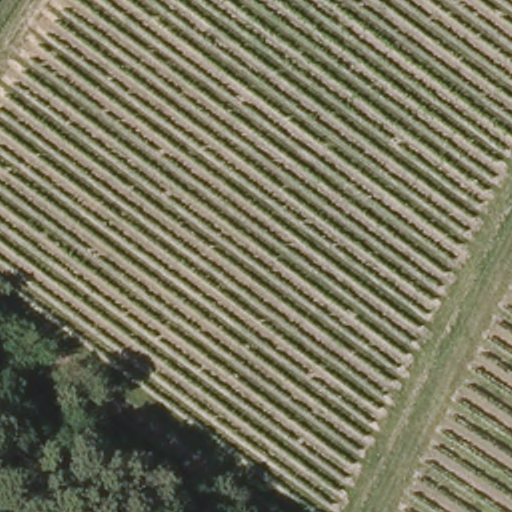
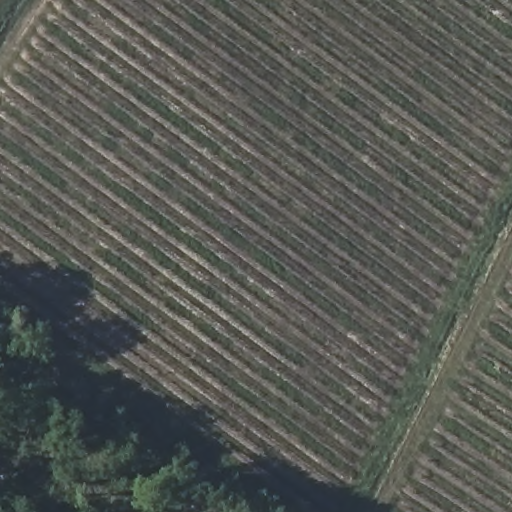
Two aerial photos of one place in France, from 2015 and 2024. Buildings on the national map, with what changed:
[]

